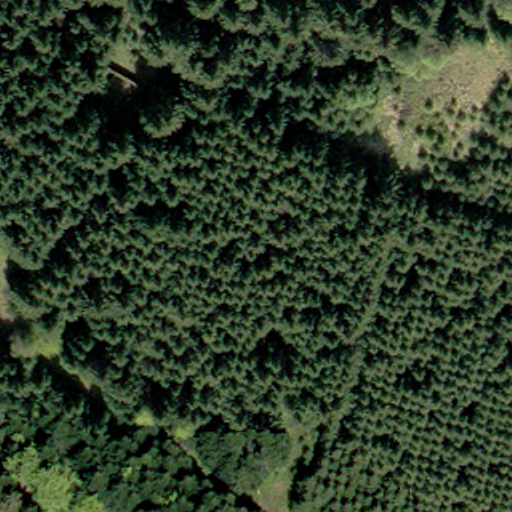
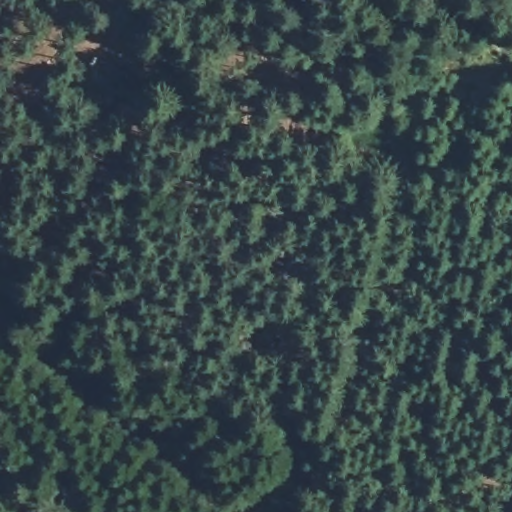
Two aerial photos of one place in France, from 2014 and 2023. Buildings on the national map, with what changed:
unchanged [(93,69),(137,96),(108,145),(65,121),(93,69)]

